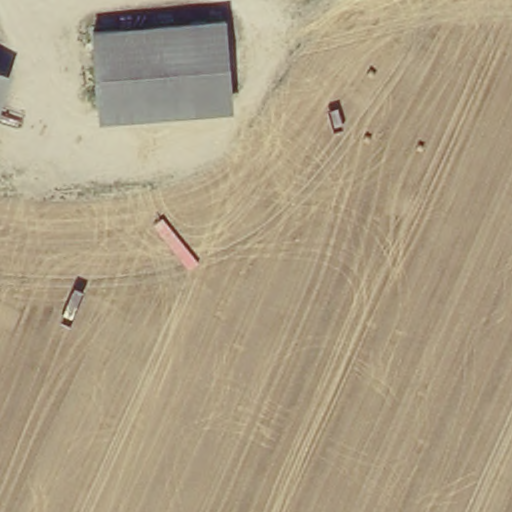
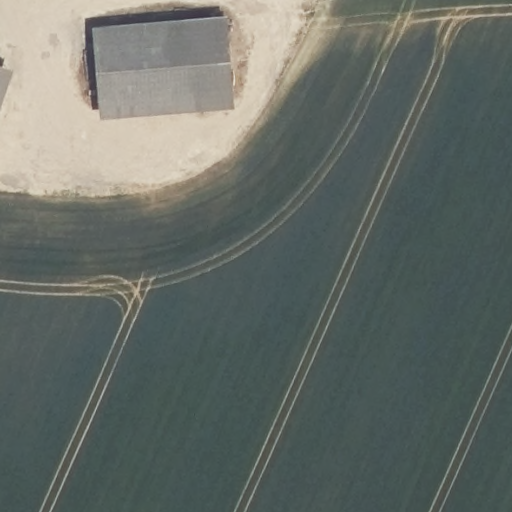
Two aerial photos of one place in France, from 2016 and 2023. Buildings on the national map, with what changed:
unchanged [(226,26),(234,119),(100,129),(92,33),(226,26)]
unchanged [(15,82),(0,121),(0,76),(15,82)]

